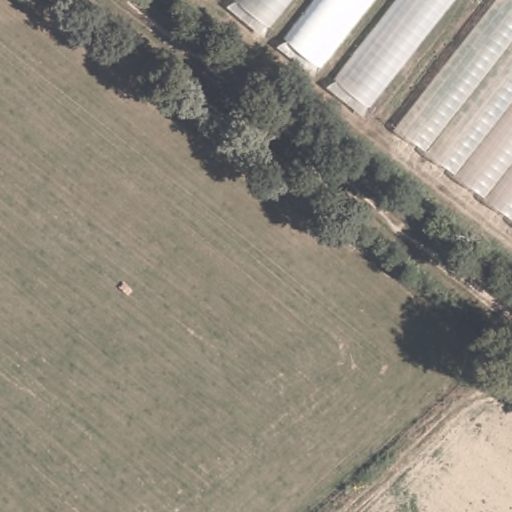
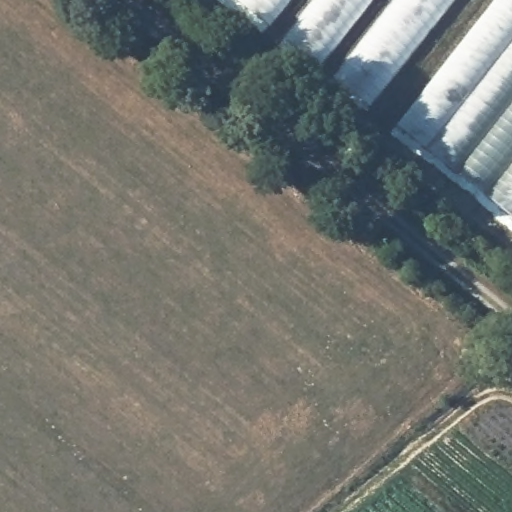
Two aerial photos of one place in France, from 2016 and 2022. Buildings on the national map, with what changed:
unchanged [(366,117),(218,0),(455,0),(366,117)]
unchanged [(496,0),(512,0),(512,216),(397,125),(496,0)]

